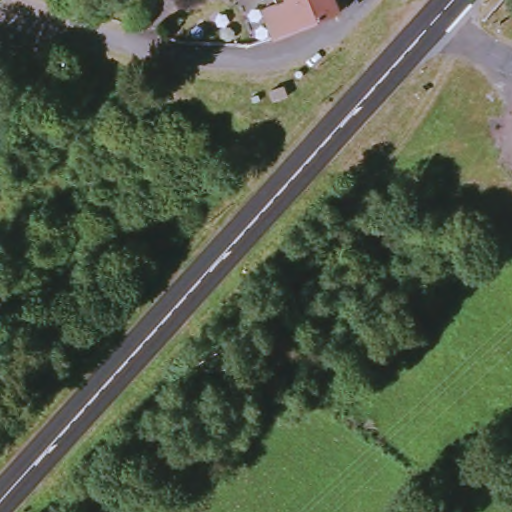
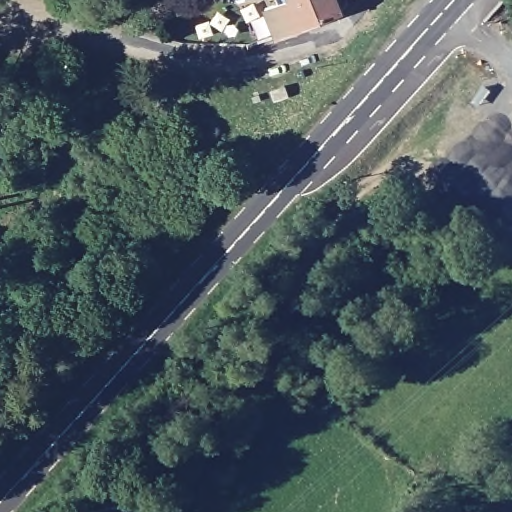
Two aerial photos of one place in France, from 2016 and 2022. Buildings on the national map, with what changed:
unchanged [(266,0),(340,0),(343,8),(311,25),(282,40),(265,8),(268,6),(266,0)]
unchanged [(255,100),(267,95),(270,105),(260,110),(255,100)]

